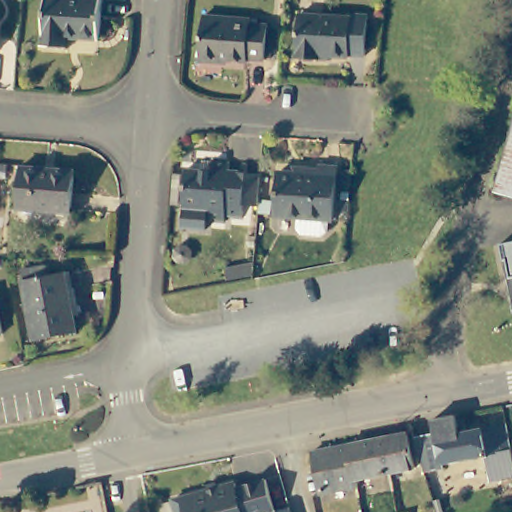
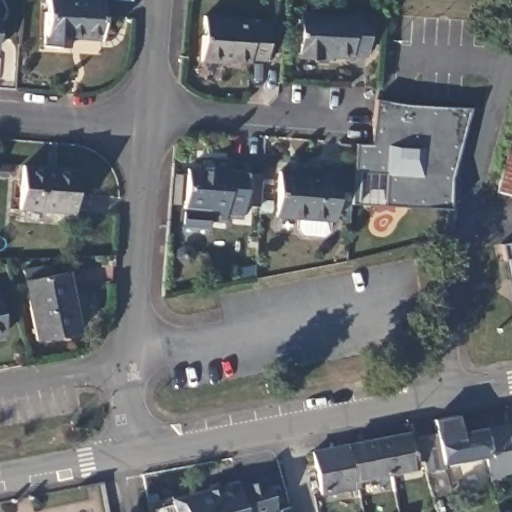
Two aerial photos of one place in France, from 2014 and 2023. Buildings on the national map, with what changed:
unchanged [(68,47),(42,44),(46,0),(101,0),(98,38),(70,35),(68,47)]
unchanged [(347,51),(347,55),(316,53),(316,57),(294,56),(296,12),(348,15),(348,12),(365,14),(363,52),(347,51)]
unchanged [(204,60),(208,13),(254,17),(254,24),(270,26),(267,58),(249,57),(249,60),(224,58),(224,62),(204,60)]
new [(451,176),(447,209),(353,202),(356,144),(372,145),(376,100),(403,105),(468,109),(451,176)]
unchanged [(512,126),(512,196),(495,192),(512,126)]
unchanged [(187,206),(190,168),(210,170),(211,157),(228,159),(228,167),(245,169),(243,202),(225,201),(225,209),(187,206)]
unchanged [(273,218),(275,173),(315,176),(316,165),(335,167),(330,222),(273,218)]
unchanged [(17,209),(20,166),(71,170),(68,213),(17,209)]
unchanged [(501,247),(512,244),(512,303),(504,263),(501,247)]
unchanged [(36,343),(24,272),(48,268),(50,279),(65,277),(75,337),(36,343)]
unchanged [(0,332),(0,327),(1,332),(0,332)]
unchanged [(439,430),(462,426),(464,438),(512,430),(512,483),(490,487),(485,462),(451,468),(453,478),(443,480),(438,481),(422,447),(431,445),(441,442),(439,430)]
unchanged [(364,476),(366,487),(325,494),(317,451),(407,434),(413,466),(364,476)]
unchanged [(176,508),(239,490),(241,495),(270,487),(277,512),(177,512),(176,508)]

